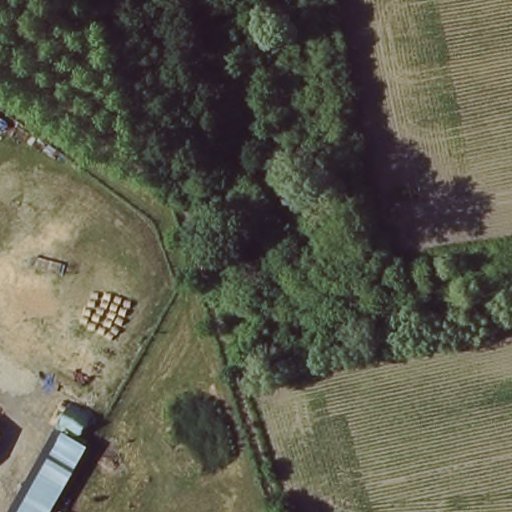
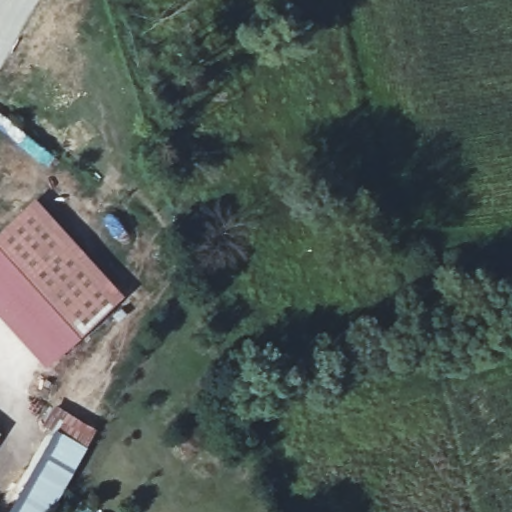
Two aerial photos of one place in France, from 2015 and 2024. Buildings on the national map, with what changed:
new [(123,294),(46,365),(0,314),(0,226),(32,197),(123,294)]
new [(53,429),(65,411),(95,429),(84,447),(48,512),(6,512),(53,429)]
unchanged [(0,445),(0,436),(4,440),(0,445)]

